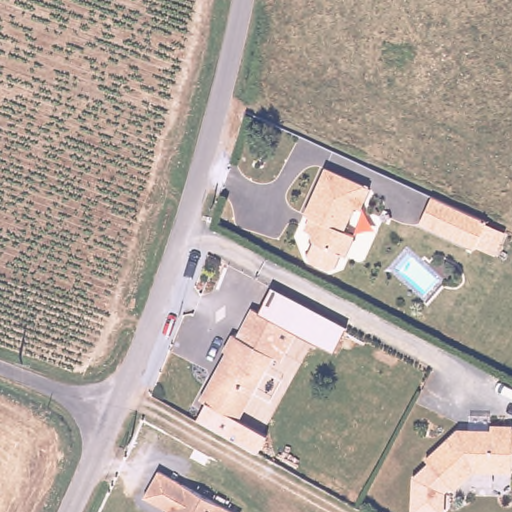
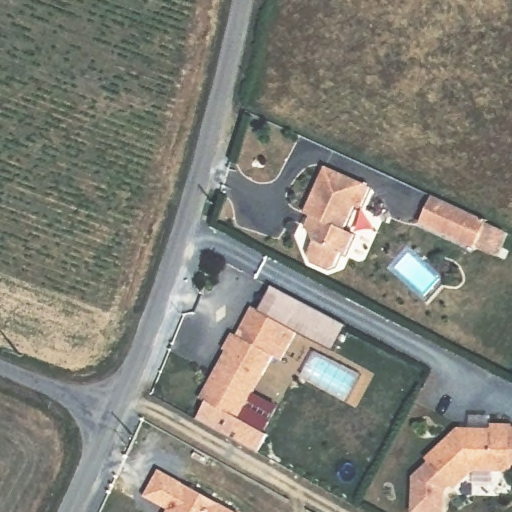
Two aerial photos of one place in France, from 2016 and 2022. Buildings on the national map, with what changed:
unchanged [(368,200),(357,223),(352,220),(341,244),(352,249),(341,271),(336,268),(333,275),(327,280),(322,281),(302,270),(310,252),(306,246),(306,238),(310,233),(300,227),(323,178),(368,200)]
unchanged [(487,256),(467,248),(465,254),(409,229),(422,199),(477,225),(476,228),(496,237),(487,256)]
unchanged [(287,327),(295,331),(280,362),(291,368),(282,384),(262,373),(237,419),(268,435),(258,453),(196,420),(206,402),(201,399),(226,353),(221,351),(231,333),(236,335),(251,308),(287,327)]
unchanged [(456,429),(490,429),(490,423),(512,424),(512,428),(512,466),(512,465),(512,472),(473,472),(455,491),(450,486),(443,492),(444,512),(411,512),(411,477),(428,463),(424,458),(456,429)]
unchanged [(143,509),(157,481),(212,512),(148,512),(143,509)]

